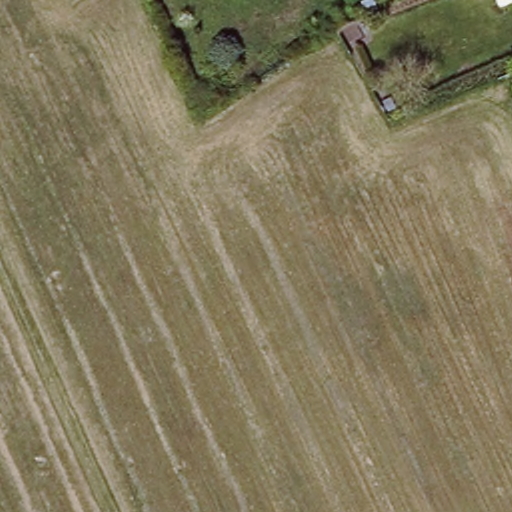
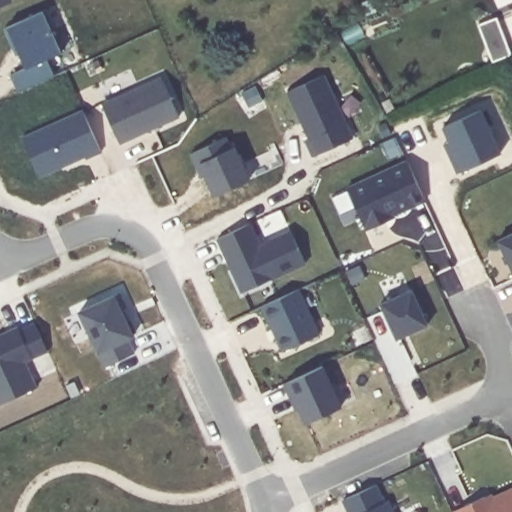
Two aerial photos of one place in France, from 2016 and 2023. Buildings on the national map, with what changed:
new [(0,6),(0,0),(13,0),(13,1),(0,6)]
new [(18,90),(10,74),(26,66),(6,26),(41,12),(60,51),(47,57),(53,75),(18,90)]
new [(121,142),(102,102),(159,76),(178,117),(121,142)]
new [(462,170),(454,173),(442,144),(449,140),(442,126),(481,110),(499,152),(462,170)]
new [(85,160),(84,156),(41,177),(23,137),(82,111),(101,151),(85,160)]
new [(215,193),(205,173),(200,175),(196,165),(191,153),(228,136),(233,148),(236,146),(251,177),(215,193)]
new [(394,216),(394,218),(366,230),(345,187),(404,161),(426,201),(394,216)]
new [(274,277),(273,276),(241,291),(218,239),(251,223),(261,244),(291,229),(306,263),(274,277)]
new [(499,239),(512,233),(512,268),(499,239)]
new [(317,333),(281,349),(261,306),(299,289),(317,333)]
new [(396,338),(381,303),(412,290),(427,324),(396,338)]
new [(134,337),(125,340),(133,353),(104,366),(98,352),(78,311),(114,294),(134,337)]
new [(24,361),(36,387),(0,402),(0,333),(16,326),(32,357),(24,361)]
new [(306,420),(288,381),(323,366),(343,403),(306,420)]
new [(341,499),(376,484),(382,502),(387,499),(393,512),(348,512),(341,499)]
new [(451,511),(492,493),(494,496),(512,487),(512,512),(451,512),(451,511)]

